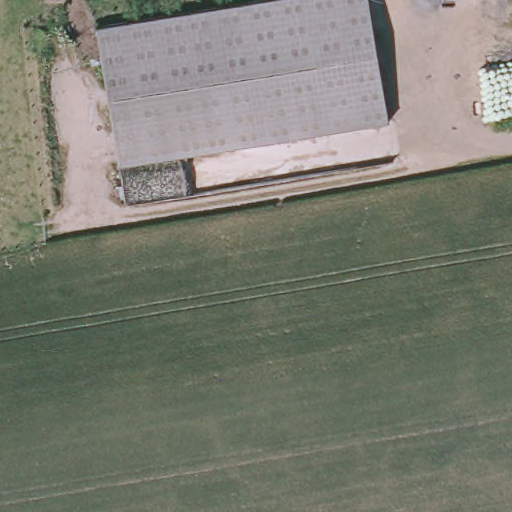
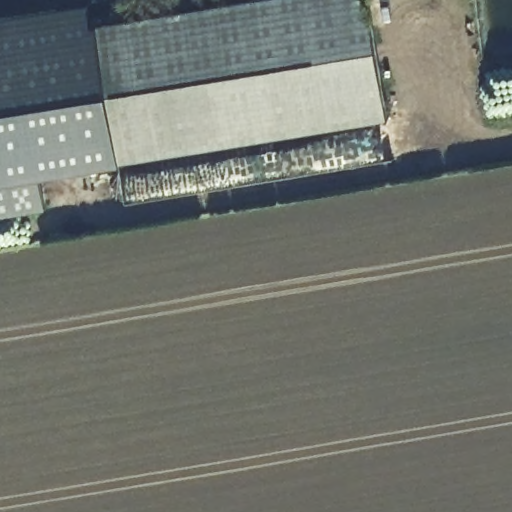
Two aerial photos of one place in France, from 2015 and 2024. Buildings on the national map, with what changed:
unchanged [(372,0),(392,121),(112,164),(94,26),(257,0),(372,0)]
new [(41,176),(47,210),(0,217),(0,18),(88,4),(94,26),(112,164),(41,176)]

